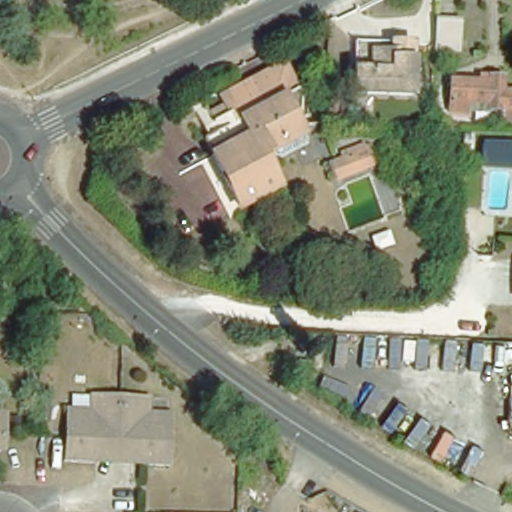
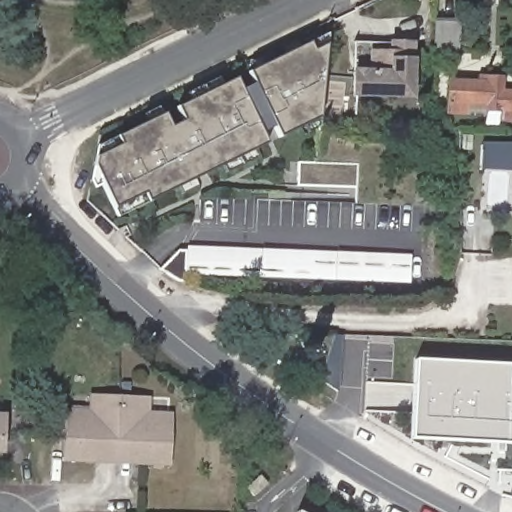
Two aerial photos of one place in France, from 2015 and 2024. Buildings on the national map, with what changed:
unchanged [(435,20),(458,21),(456,52),(434,51),(435,20)]
new [(119,145),(115,135),(163,112),(169,127),(183,120),(176,106),(236,79),(241,89),(254,83),(248,72),(308,44),(312,51),(325,45),(319,116),(281,136),(276,126),(261,132),(266,144),(147,202),(144,194),(115,207),(95,165),(97,155),(119,145)]
unchanged [(408,104),(350,102),(350,67),(351,47),(391,49),(410,50),(408,104)]
demolished [(213,124),(214,123),(228,117),(225,110),(221,101),(284,69),(301,99),(301,117),(293,121),(296,126),(302,139),(265,159),(278,190),(238,210),(203,142),(206,140),(197,121),(210,115),(210,116),(213,124)]
unchanged [(498,110),(484,110),(484,105),(448,102),(448,82),(487,84),(487,76),(504,77),(504,91),(512,91),(512,120),(498,120),(498,110)]
unchanged [(471,137),(470,151),(462,151),(462,137),(471,137)]
new [(481,142),(512,143),(512,170),(479,167),(481,142)]
demolished [(333,157),(332,152),(356,145),(356,146),(362,145),(370,167),(326,181),(320,161),(333,157)]
new [(410,283),(186,273),(185,281),(179,281),(161,268),(178,251),(186,251),(186,246),(412,254),(410,283)]
new [(511,386),(512,386),(512,445),(414,440),(417,360),(511,366),(511,386)]
demolished [(512,433),(503,433),(504,415),(506,382),(512,382),(512,433)]
unchanged [(138,463),(138,455),(94,453),(94,461),(62,460),(64,415),(64,409),(89,410),(90,394),(96,395),(141,396),(147,397),(146,412),(171,414),(171,420),(169,465),(138,463)]
unchanged [(1,415),(1,420),(0,449),(0,414),(1,415)]
new [(297,512),(295,512),(295,511),(297,512)]

